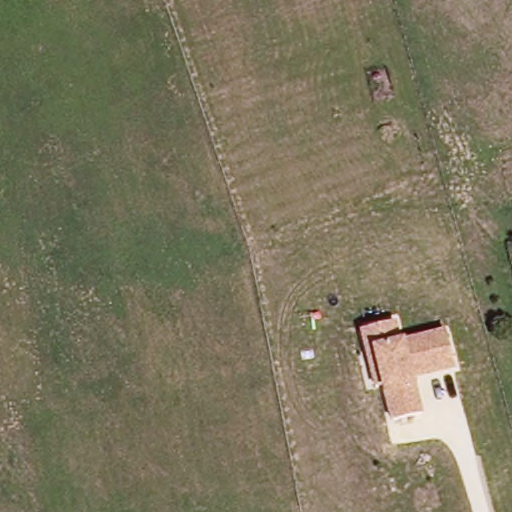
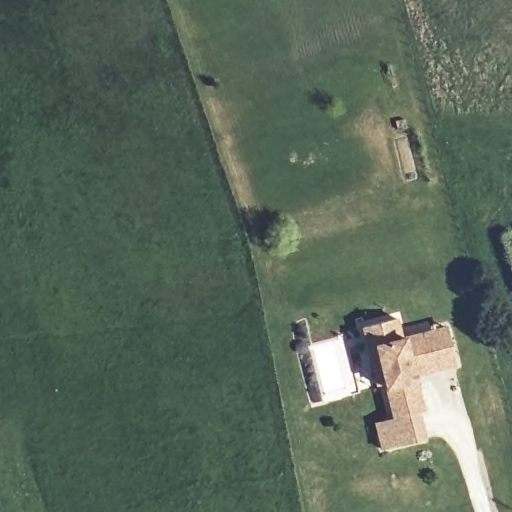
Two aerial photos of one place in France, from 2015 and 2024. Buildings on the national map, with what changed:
unchanged [(405,336),(449,324),(459,365),(416,376),(425,410),(392,418),(385,391),(383,379),(375,383),(362,326),(400,317),(405,336)]
new [(427,439),(380,450),(374,422),(392,418),(419,411),(427,439)]

